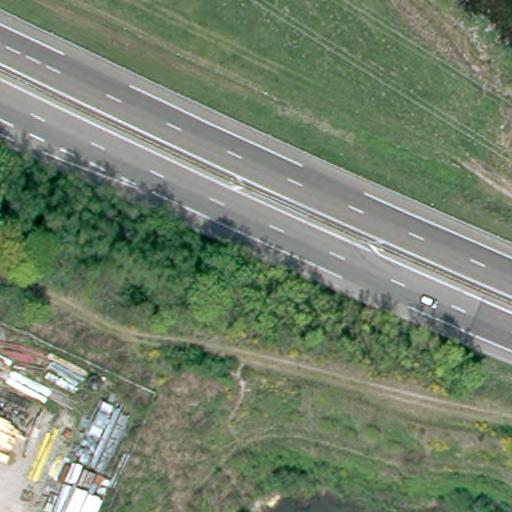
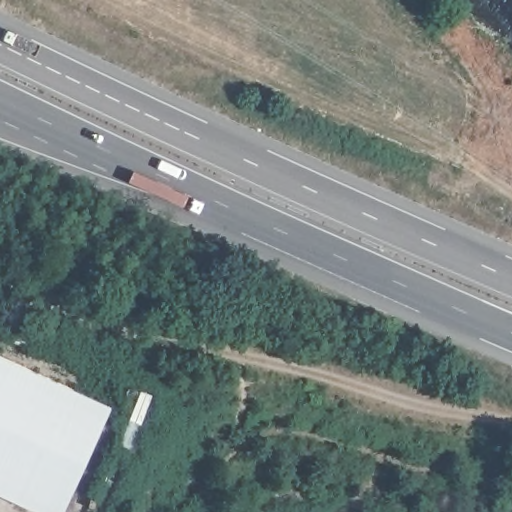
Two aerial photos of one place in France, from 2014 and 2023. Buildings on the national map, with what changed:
new [(109,407),(60,512),(43,512),(0,492),(0,357),(109,407)]

